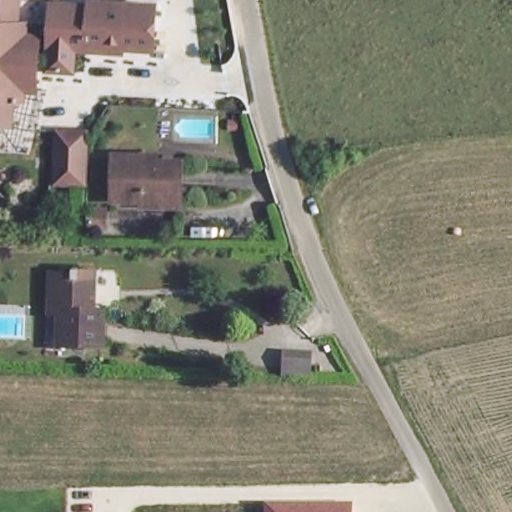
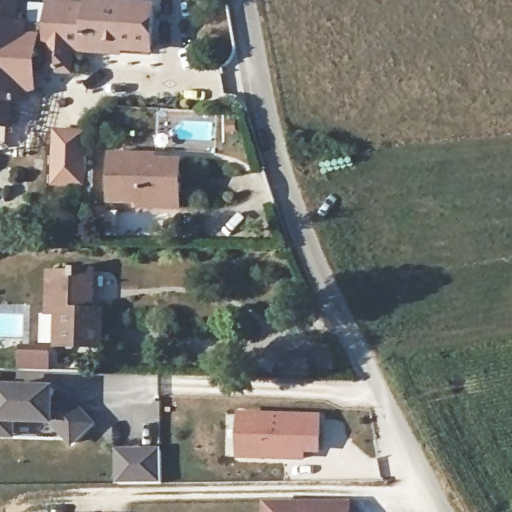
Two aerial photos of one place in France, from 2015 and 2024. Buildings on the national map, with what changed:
unchanged [(119,44),(119,50),(70,47),(69,69),(43,68),(45,46),(33,45),(30,88),(20,87),(19,96),(19,98),(9,97),(8,119),(0,119),(0,0),(15,0),(13,18),(46,20),(48,0),(58,0),(86,1),(86,0),(136,0),(152,1),(149,46),(119,44)]
unchanged [(83,182),(53,181),(54,131),(84,132),(83,182)]
unchanged [(143,155),(143,164),(181,165),(181,196),(138,193),(138,199),(109,198),(111,153),(143,155)]
unchanged [(57,312),(51,311),(52,272),(89,273),(88,312),(99,313),(98,344),(57,342),(57,312)]
new [(49,341),(48,367),(17,366),(18,341),(49,341)]
new [(310,348),(308,374),(279,373),(279,347),(310,348)]
new [(52,393),(68,393),(95,421),(70,443),(46,419),(13,419),(13,436),(0,436),(0,378),(53,380),(52,393)]
new [(319,411),(317,450),(304,450),(304,459),(233,457),(236,408),(319,411)]
new [(159,445),(158,480),(114,481),(113,445),(159,445)]
unchanged [(352,502),(352,512),(265,512),(264,502),(352,502)]

